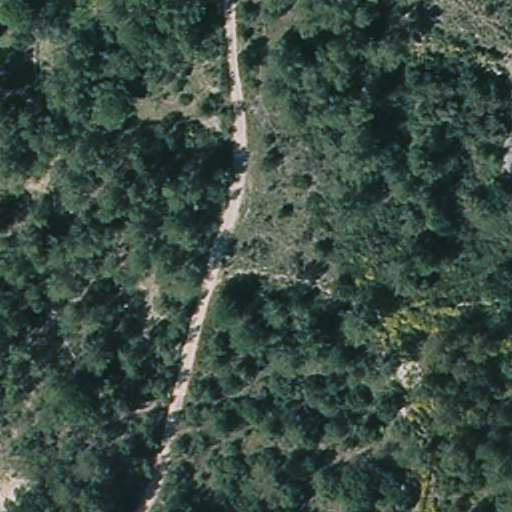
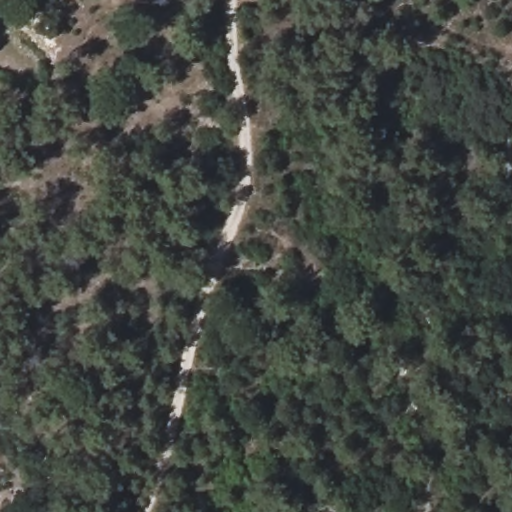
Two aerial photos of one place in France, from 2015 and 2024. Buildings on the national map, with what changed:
[]

